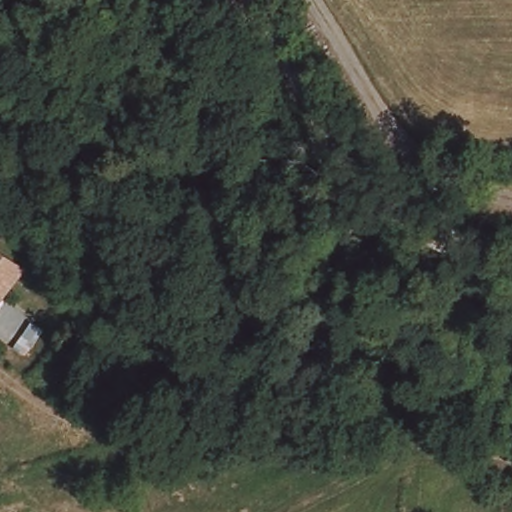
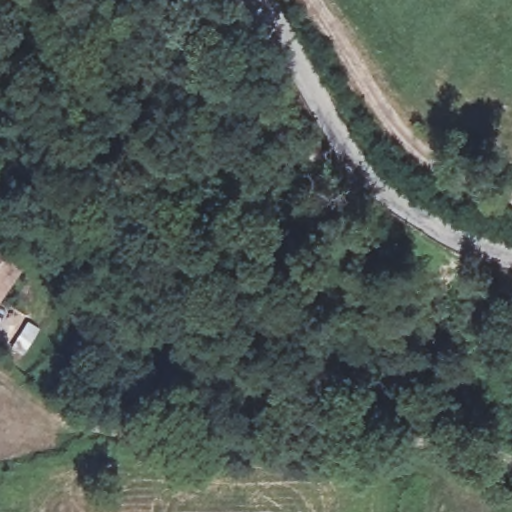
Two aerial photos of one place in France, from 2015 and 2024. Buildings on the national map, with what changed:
unchanged [(0,300),(0,269),(14,281),(0,300)]

